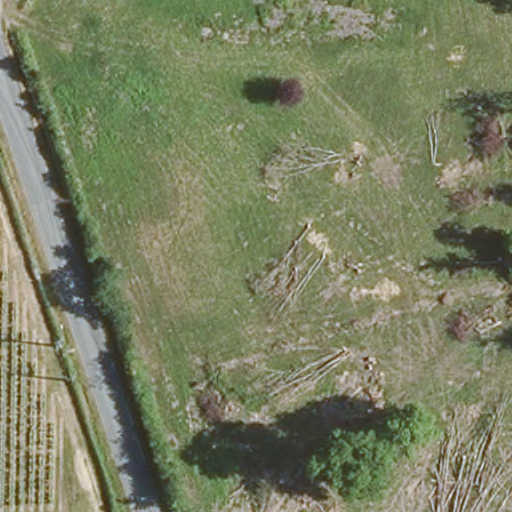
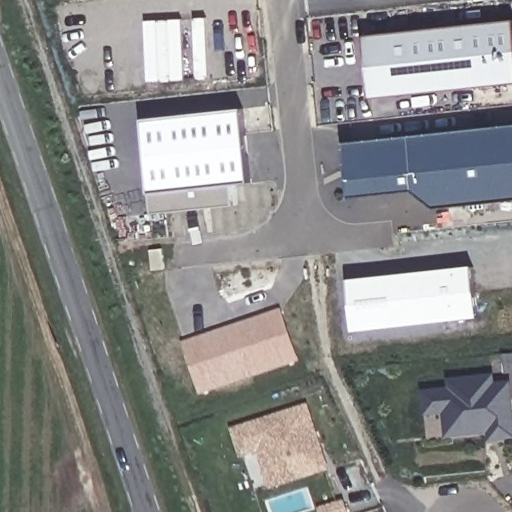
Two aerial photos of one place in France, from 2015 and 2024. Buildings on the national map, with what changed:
new [(512,18),(512,82),(367,96),(362,34),(512,18)]
new [(145,21),(182,20),(185,80),(148,82),(145,21)]
new [(239,107),(248,183),(229,184),(230,207),(151,214),(139,118),(239,107)]
new [(512,126),(512,201),(436,209),(414,191),(352,197),(344,144),(512,126)]
new [(471,266),(477,317),(354,329),(348,277),(471,266)]
new [(282,312),(299,363),(200,397),(181,344),(282,312)]
new [(448,386),(447,378),(494,373),(494,382),(512,381),(512,386),(512,438),(489,440),(488,431),(446,436),(443,412),(425,414),(421,389),(448,386)]
new [(308,408),(328,473),(269,489),(258,456),(239,459),(231,432),(308,408)]

